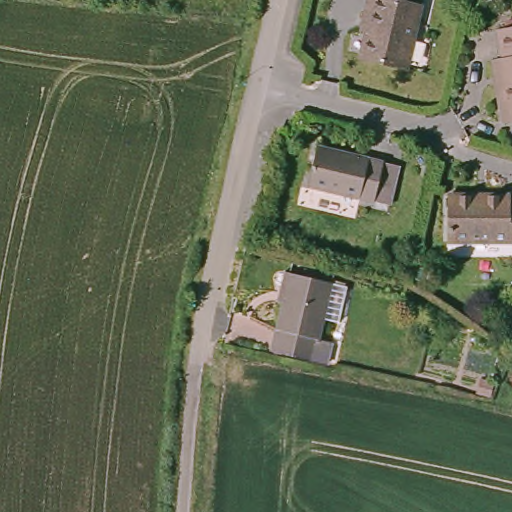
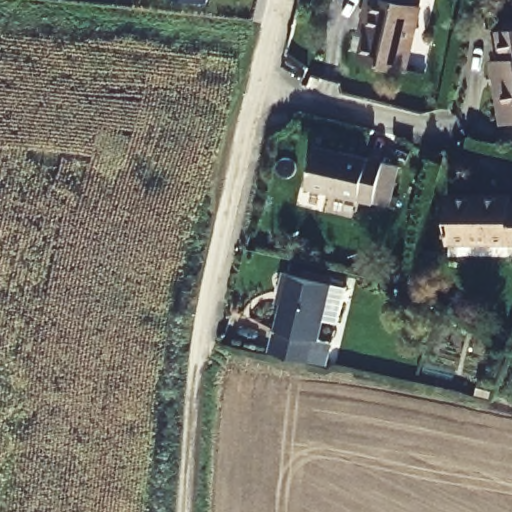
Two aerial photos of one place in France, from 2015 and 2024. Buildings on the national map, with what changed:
unchanged [(362,58),(369,27),(362,25),(363,20),(368,0),(420,0),(405,68),(362,58)]
unchanged [(500,28),(512,27),(512,120),(502,122),(497,86),(494,59),(500,58),(504,57),(500,28)]
unchanged [(373,155),(387,158),(377,198),(363,195),(302,181),(312,141),(373,155)]
unchanged [(447,194),(510,194),(510,202),(512,203),(512,241),(447,240),(447,194)]
unchanged [(314,360),(272,350),(283,302),(277,301),(283,271),(290,272),(332,282),(314,360)]

